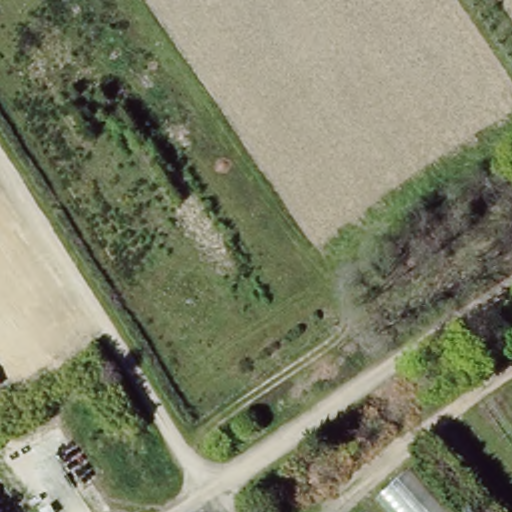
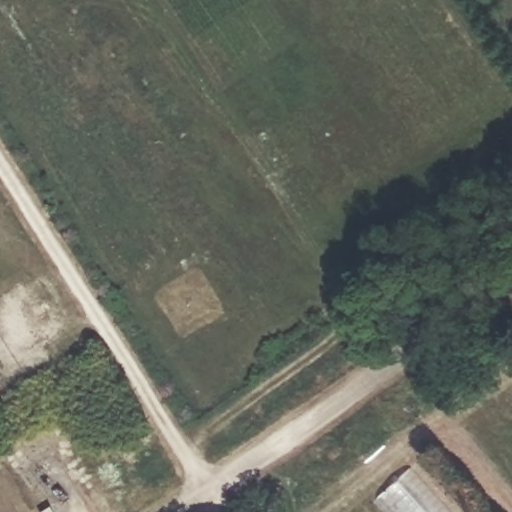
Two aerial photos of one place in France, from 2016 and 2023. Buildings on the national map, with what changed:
unchanged [(1,392),(0,392),(0,390),(1,392)]
unchanged [(412,465),(453,512),(387,512),(376,500),(412,465)]

